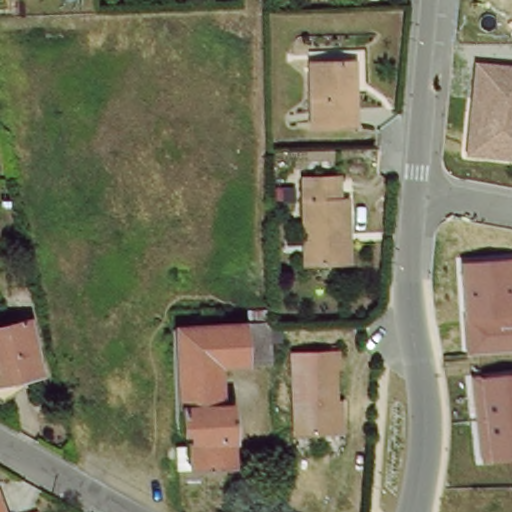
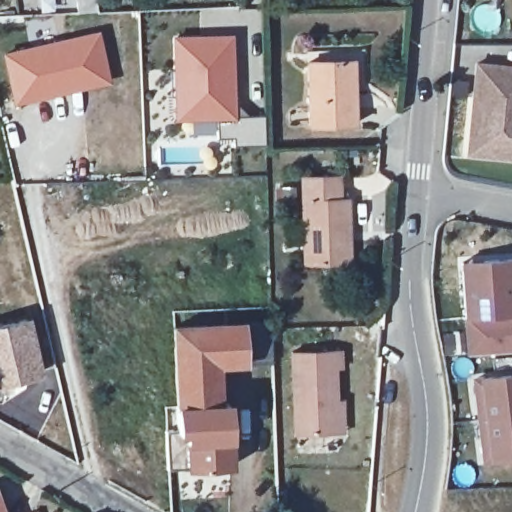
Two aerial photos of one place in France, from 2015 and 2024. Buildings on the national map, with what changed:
new [(97,14),(80,14),(79,0),(96,0),(97,14)]
new [(13,106),(2,54),(98,31),(110,84),(13,106)]
new [(234,137),(218,137),(217,121),(175,122),(173,36),(234,35),(237,105),(249,116),(263,116),(264,144),(235,145),(234,137)]
unchanged [(311,126),(309,61),(347,60),(354,60),(355,91),(356,125),(311,126)]
unchanged [(467,156),(477,62),(512,66),(512,161),(467,156)]
unchanged [(333,267),(305,268),(302,181),(340,180),(340,204),(348,204),(350,237),(350,267),(333,267)]
unchanged [(468,355),(466,319),(462,263),(512,260),(512,350),(468,355)]
unchanged [(223,406),(232,405),(237,466),(183,469),(182,448),(193,447),(193,431),(185,432),(179,328),(207,326),(207,310),(225,308),(225,319),(225,325),(231,325),(277,322),(277,328),(278,361),(222,365),(223,406)]
unchanged [(40,373),(0,382),(0,326),(27,320),(40,373)]
unchanged [(343,433),(337,434),(295,435),(292,353),(341,352),(342,369),(335,369),(337,402),(342,401),(343,433)]
unchanged [(491,460),(482,461),(472,377),(482,376),(512,374),(512,459),(491,460)]
unchanged [(4,482),(14,509),(15,512),(0,512),(0,484),(4,482)]

